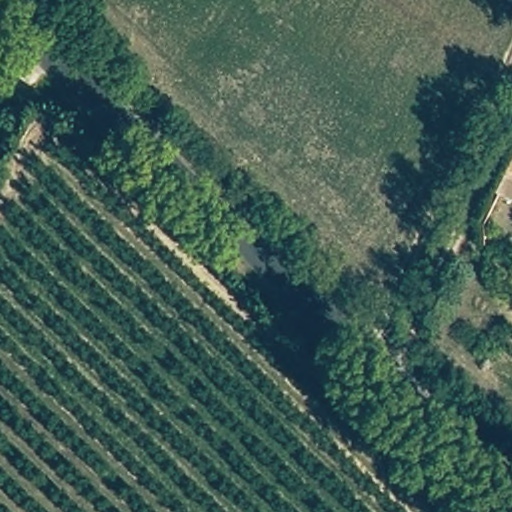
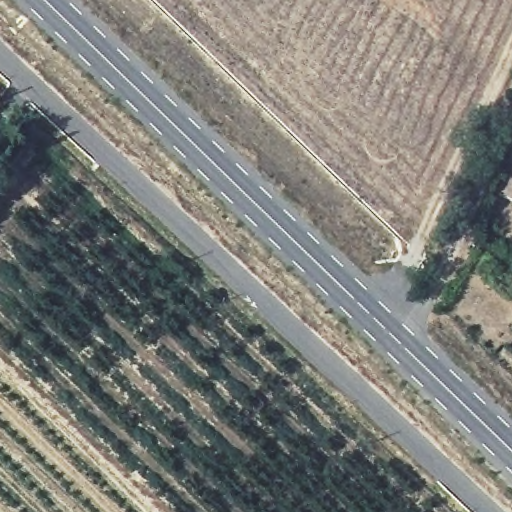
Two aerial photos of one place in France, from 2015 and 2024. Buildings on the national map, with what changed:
unchanged [(512,178),(505,174),(512,162),(512,178)]

